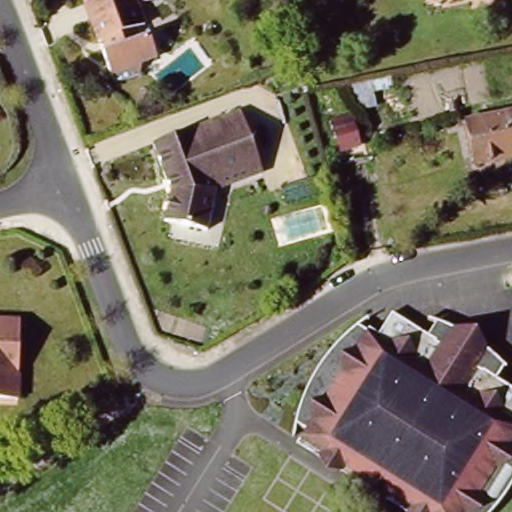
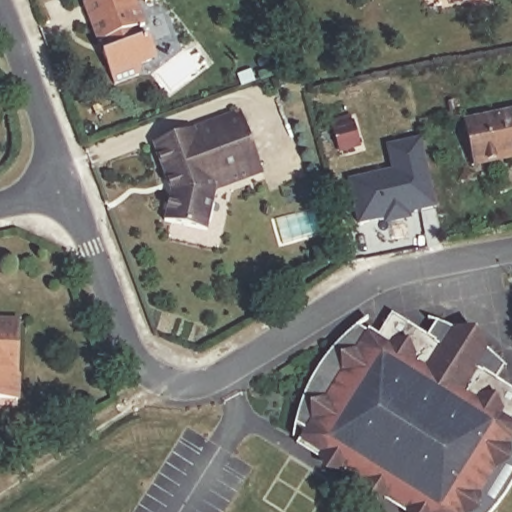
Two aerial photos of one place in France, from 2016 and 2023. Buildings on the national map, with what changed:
unchanged [(136,0),(146,33),(135,36),(139,50),(150,44),(159,70),(110,85),(85,9),(106,0),(136,0)]
unchanged [(459,0),(477,0),(460,5),(459,0)]
unchanged [(214,229),(168,219),(169,199),(150,148),(200,119),(247,103),(267,170),(216,184),(214,229)]
unchanged [(469,160),(461,122),(512,110),(512,161),(470,170),(469,160)]
new [(437,206),(410,212),(406,218),(390,221),(385,218),(359,223),(350,180),(394,170),(387,146),(422,138),(437,206)]
unchanged [(298,440),(297,431),(300,411),(311,387),(320,369),(338,344),(360,322),(382,333),(395,308),(428,332),(439,315),(449,318),(465,325),(490,344),(500,354),(507,363),(500,375),(512,382),(512,486),(492,512),(419,512),(298,440)]
unchanged [(20,387),(28,386),(26,411),(0,410),(0,325),(24,327),(20,387)]

